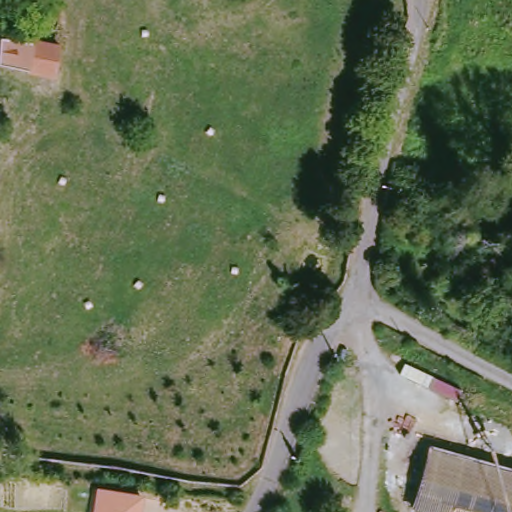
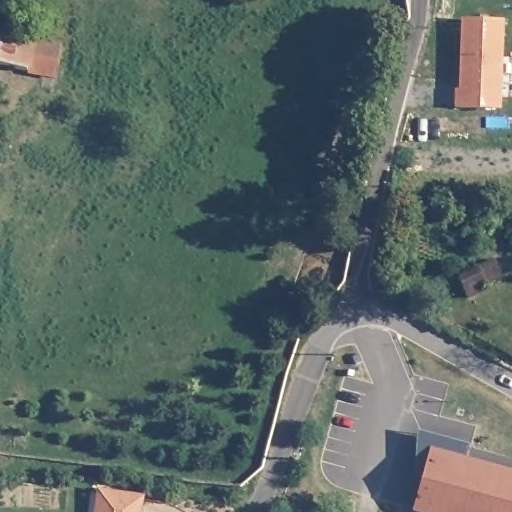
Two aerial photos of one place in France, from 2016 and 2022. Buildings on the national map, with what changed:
new [(455,89),(464,90),(464,81),(459,80),(462,19),(502,20),(498,110),(454,108),(455,89)]
unchanged [(57,71),(0,65),(0,37),(31,43),(60,45),(57,71)]
unchanged [(459,273),(493,261),(500,279),(480,286),(482,293),(468,298),(459,273)]
unchanged [(435,327),(440,318),(473,335),(468,344),(435,327)]
unchanged [(512,470),(512,512),(411,512),(409,512),(429,447),(512,470)]
unchanged [(143,509),(143,512),(99,512),(100,501),(143,509)]

